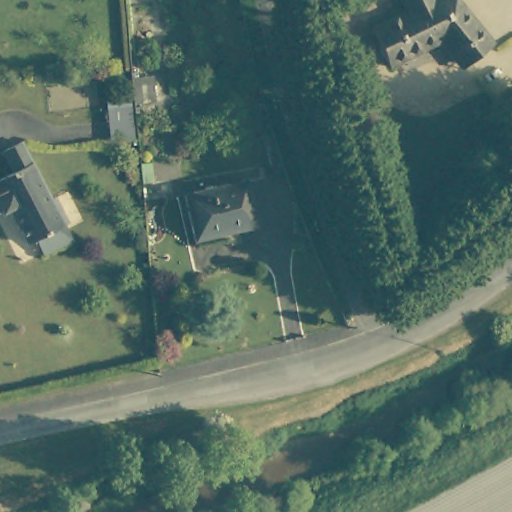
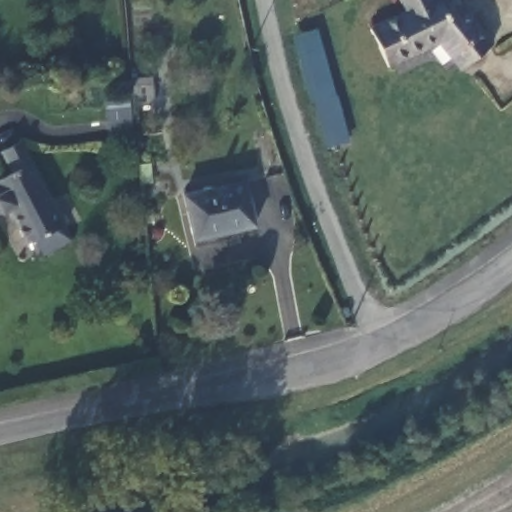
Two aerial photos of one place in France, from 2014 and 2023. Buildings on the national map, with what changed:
unchanged [(390,73),(370,33),(385,25),(386,28),(404,19),(395,0),(428,0),(429,3),(434,0),(435,0),(440,10),(455,2),(495,48),(466,74),(441,46),(390,73)]
new [(293,35),(316,29),(349,141),(327,146),(314,100),(311,101),(293,35)]
unchanged [(155,97),(136,100),(134,81),(152,78),(155,97)]
unchanged [(34,243),(15,209),(10,212),(5,205),(0,208),(0,182),(20,171),(10,151),(28,142),(57,196),(61,194),(75,220),(68,224),(77,242),(50,257),(40,239),(34,243)]
unchanged [(252,231),(189,244),(178,196),(241,182),(252,231)]

